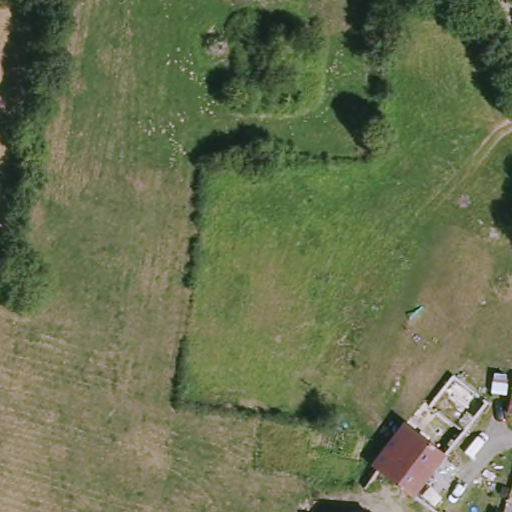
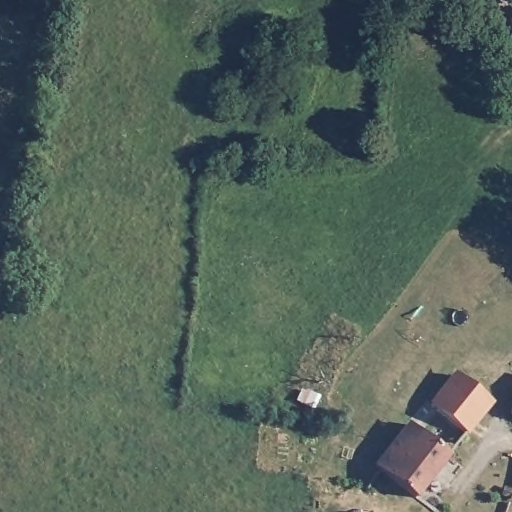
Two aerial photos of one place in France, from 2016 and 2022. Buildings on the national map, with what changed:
new [(430,403),(455,373),(494,404),(469,434),(430,403)]
unchanged [(412,416),(453,448),(420,490),(411,483),(400,497),(367,473),(379,458),(412,416)]

